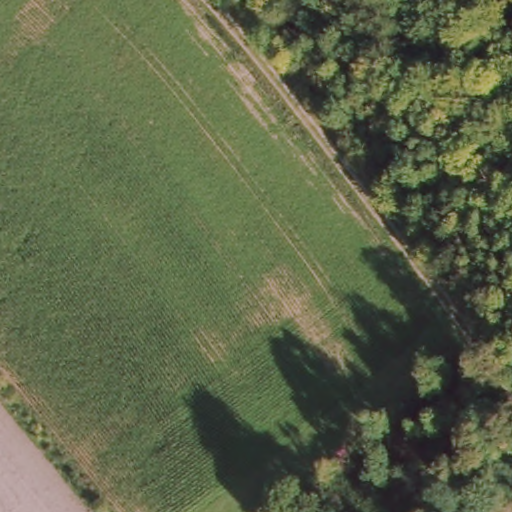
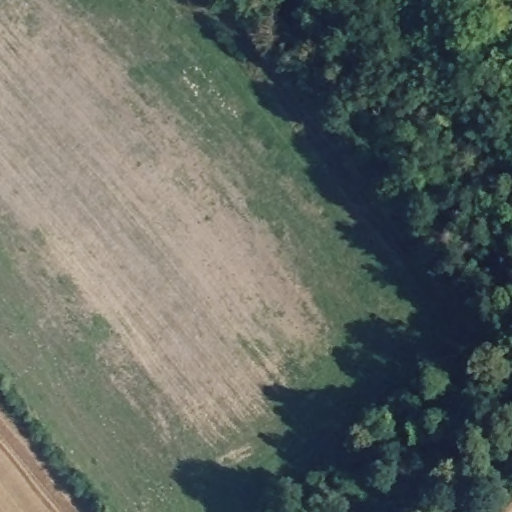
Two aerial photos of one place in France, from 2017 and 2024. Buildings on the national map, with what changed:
[]

